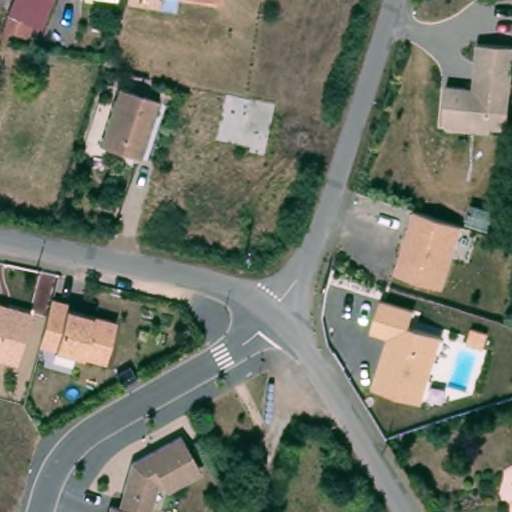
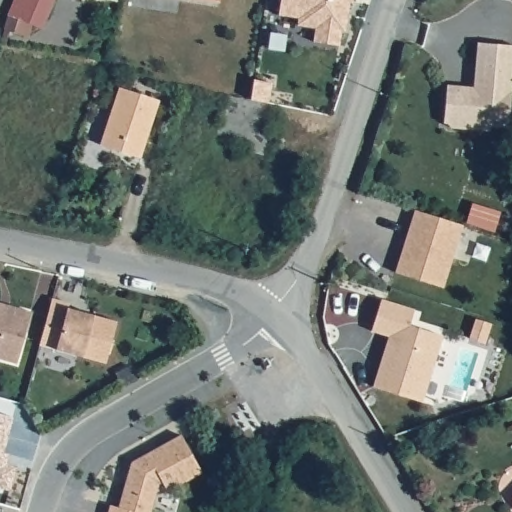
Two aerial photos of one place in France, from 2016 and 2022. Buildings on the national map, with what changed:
unchanged [(47,30),(12,18),(19,0),(57,0),(47,30)]
unchanged [(219,4),(202,0),(220,0),(219,4)]
new [(340,30),(338,44),(312,40),(315,26),(297,24),(298,16),(278,13),(280,0),(349,0),(347,14),(344,30),(340,30)]
unchanged [(446,84),(472,87),(476,42),(512,45),(512,59),(507,130),(452,128),(442,119),(446,84)]
unchanged [(160,98),(144,157),(102,143),(119,87),(160,98)]
unchanged [(415,209),(460,224),(441,287),(394,272),(415,209)]
unchanged [(72,297),(70,304),(119,318),(107,361),(41,341),(54,294),(72,297)]
unchanged [(387,336),(370,330),(380,299),(415,308),(411,327),(440,336),(421,401),(372,387),(387,336)]
unchanged [(16,361),(0,357),(0,303),(29,311),(16,361)]
new [(16,466),(9,490),(0,488),(0,413),(12,416),(3,452),(9,454),(6,463),(16,466)]
unchanged [(170,489),(163,478),(153,512),(109,512),(111,503),(122,507),(132,461),(182,434),(205,470),(170,489)]

